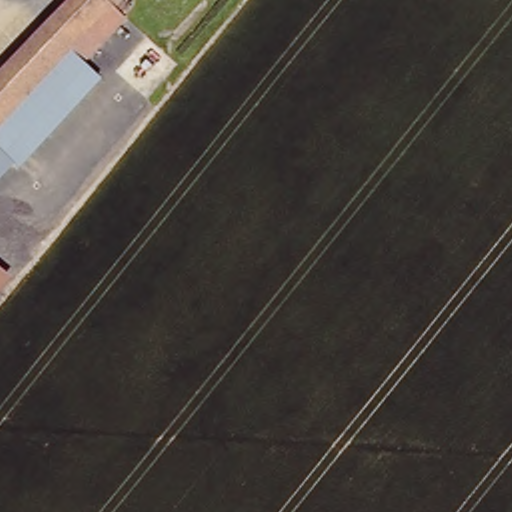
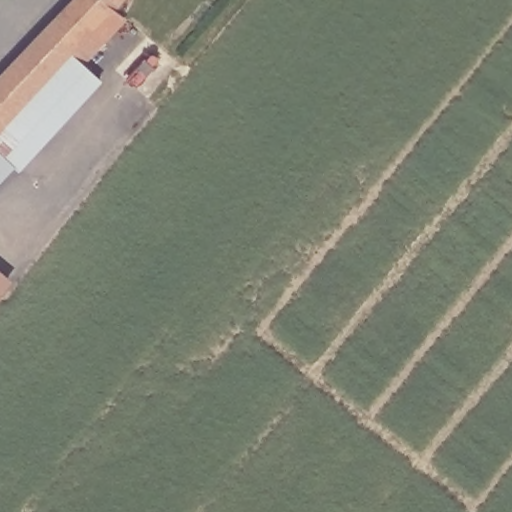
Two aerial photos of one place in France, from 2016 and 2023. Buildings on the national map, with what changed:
unchanged [(129,0),(120,9),(126,14),(73,72),(60,60),(0,124),(0,75),(70,0),(129,0)]
unchanged [(0,124),(60,60),(73,72),(84,83),(13,158),(2,147),(0,145),(0,124)]
unchanged [(0,149),(0,145),(2,147),(0,149)]
unchanged [(0,285),(0,270),(7,276),(0,285)]

